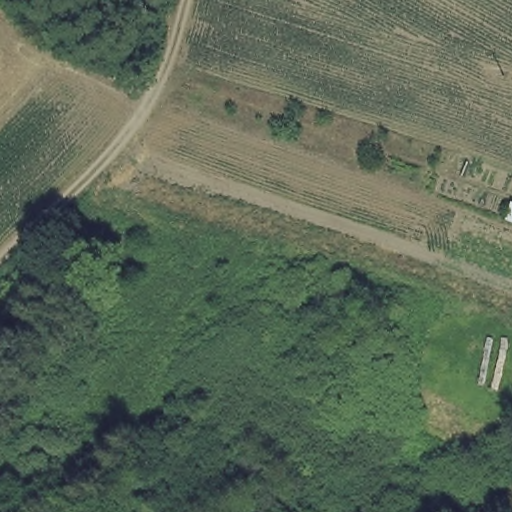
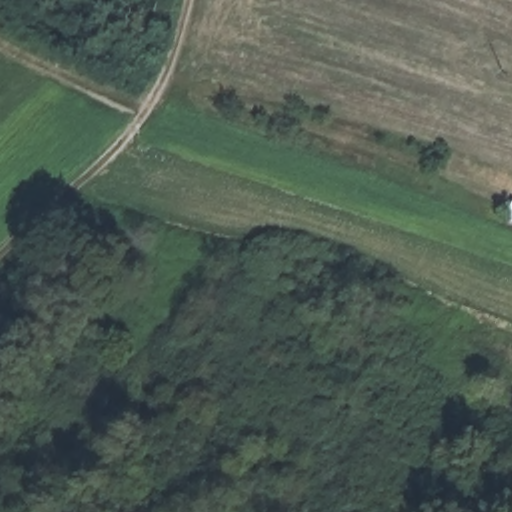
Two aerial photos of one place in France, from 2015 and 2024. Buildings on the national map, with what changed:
unchanged [(512,212),(512,225),(508,224),(512,212)]

